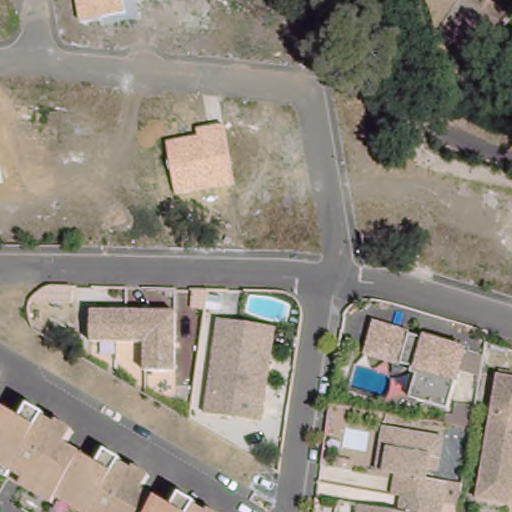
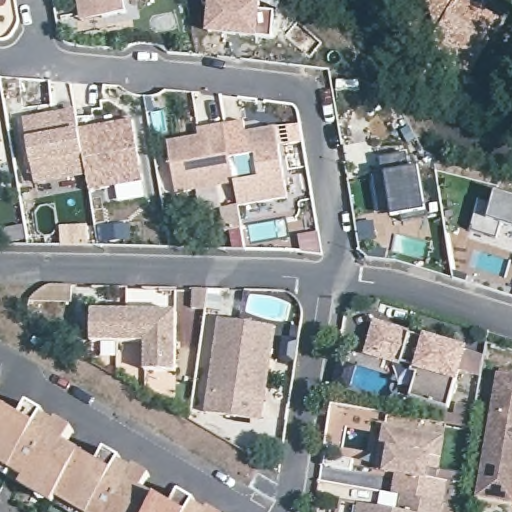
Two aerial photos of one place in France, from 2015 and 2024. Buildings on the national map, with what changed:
unchanged [(80,23),(77,0),(125,0),(126,14),(80,23)]
new [(261,14),(274,13),(274,39),(256,38),(206,35),(206,19),(203,0),(259,0),(261,1),(261,14)]
unchanged [(497,46),(489,65),(426,39),(417,0),(512,0),(512,38),(507,50),(497,46)]
new [(74,110),(79,131),(87,177),(35,186),(23,119),(74,110)]
new [(134,121),(144,182),(89,192),(79,131),(134,121)]
new [(244,122),(246,133),(276,128),(287,197),(238,205),(236,185),(235,183),(259,178),(255,155),(231,159),(226,125),(244,122)]
unchanged [(176,194),(168,141),(198,136),(197,130),(226,125),(236,185),(176,194)]
new [(384,176),(380,160),(418,154),(420,166),(429,211),(392,218),(389,211),(379,215),(373,177),(384,176)]
new [(477,201),(491,205),(494,192),(512,198),(512,229),(500,225),(495,239),(468,231),(477,201)]
unchanged [(176,314),(174,368),(145,367),(144,345),(95,343),(94,312),(176,314)]
unchanged [(217,318),(273,325),(258,418),(202,411),(217,318)]
unchanged [(373,358),(381,328),(472,349),(457,408),(418,399),(425,370),(407,366),(373,358)]
unchanged [(475,497),(497,372),(512,375),(512,502),(475,497)]
unchanged [(0,400),(0,380),(8,385),(0,400)]
unchanged [(93,512),(92,512),(70,512),(25,487),(33,475),(18,470),(11,479),(0,473),(0,401),(13,408),(27,415),(36,402),(52,411),(50,417),(64,425),(68,421),(79,428),(73,440),(85,449),(104,458),(112,446),(124,452),(125,462),(139,467),(143,462),(157,472),(149,483),(166,493),(179,501),(188,488),(202,496),(199,503),(207,506),(211,502),(230,512),(93,512)]
unchanged [(395,494),(387,492),(391,473),(379,470),(383,447),(374,446),(377,424),(437,433),(433,462),(425,461),(424,476),(441,479),(438,504),(395,494)]
unchanged [(438,504),(436,512),(355,512),(356,507),(391,511),(395,494),(438,504)]

